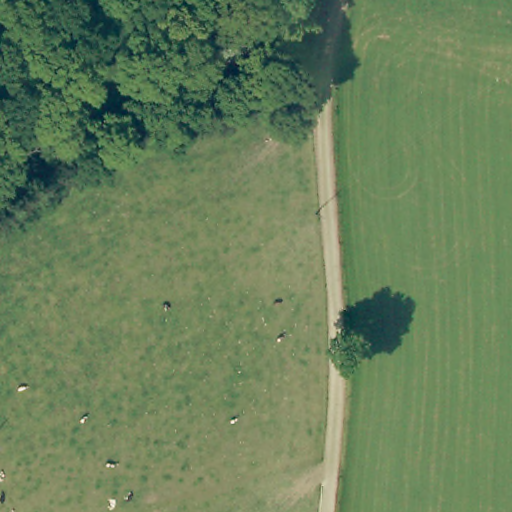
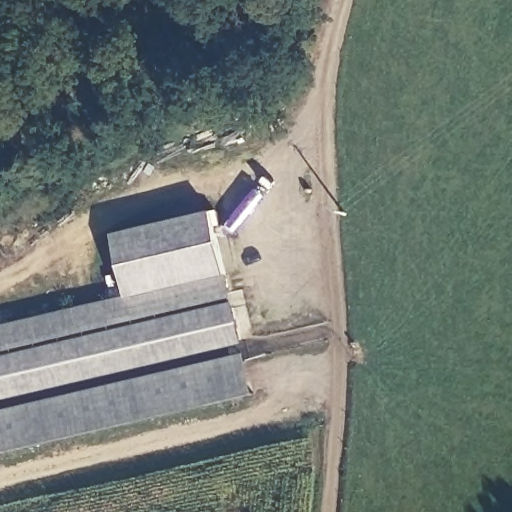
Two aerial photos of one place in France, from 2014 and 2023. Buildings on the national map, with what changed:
new [(111,236),(210,212),(226,277),(243,345),(0,402),(0,325),(125,296),(111,236)]
new [(253,396),(0,455),(0,412),(244,355),(253,396)]

